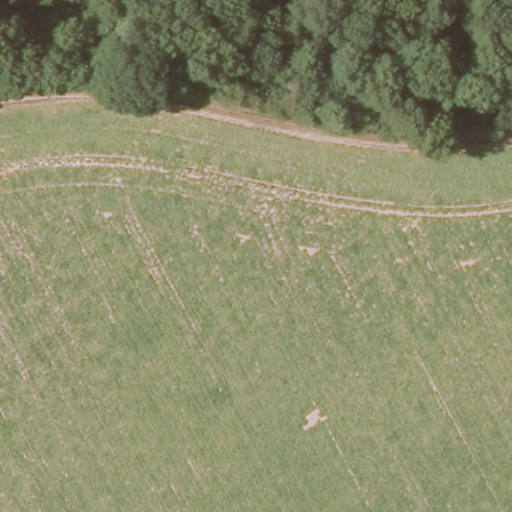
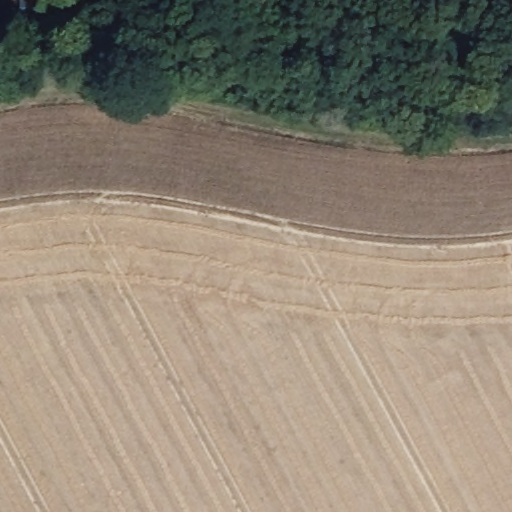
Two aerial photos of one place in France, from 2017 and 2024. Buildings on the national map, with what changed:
unchanged [(0,6),(0,0),(4,0),(6,4),(0,6)]

